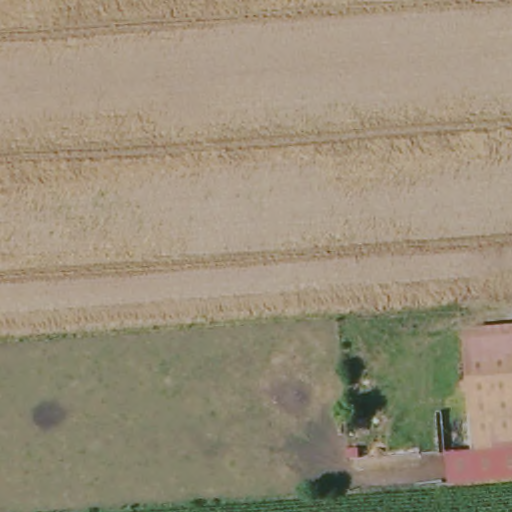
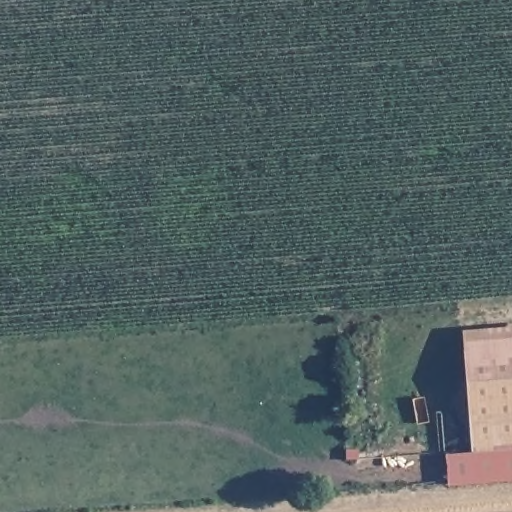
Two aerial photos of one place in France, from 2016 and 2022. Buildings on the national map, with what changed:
unchanged [(512,330),(512,348),(462,352),(461,334),(512,330)]
unchanged [(462,352),(512,348),(512,451),(470,454),(462,352)]
unchanged [(447,456),(470,454),(512,451),(512,477),(449,482),(447,456)]

